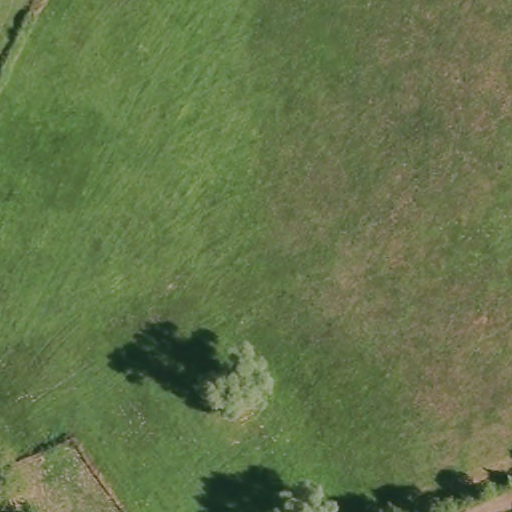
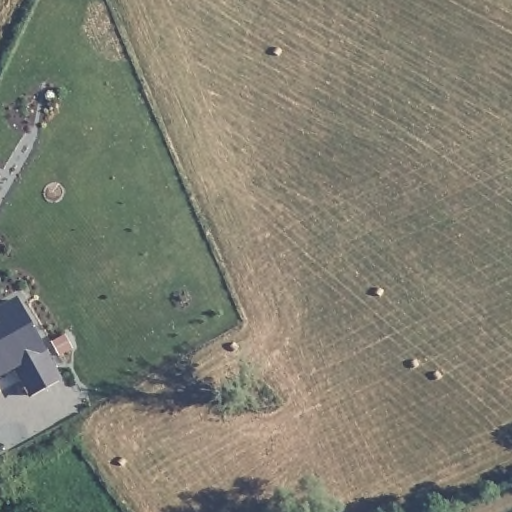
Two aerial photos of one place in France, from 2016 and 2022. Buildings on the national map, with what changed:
new [(12,368),(0,376),(0,307),(16,298),(61,380),(28,397),(12,368)]

